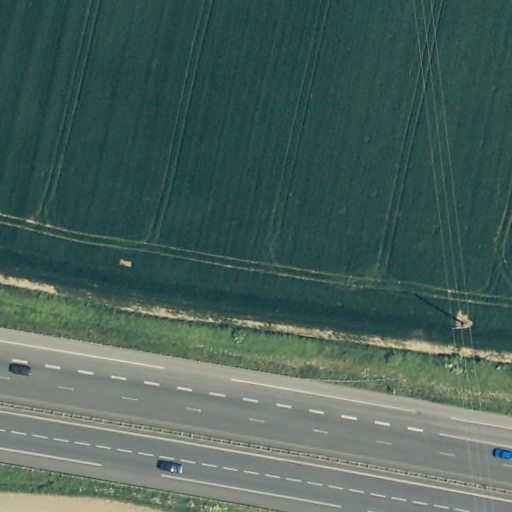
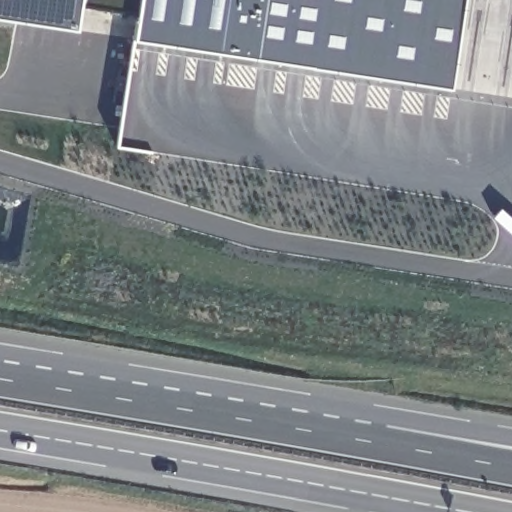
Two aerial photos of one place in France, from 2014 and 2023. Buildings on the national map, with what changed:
new [(452,90),(125,42),(129,15),(74,6),(70,34),(0,22),(0,0),(466,0),(452,90)]

